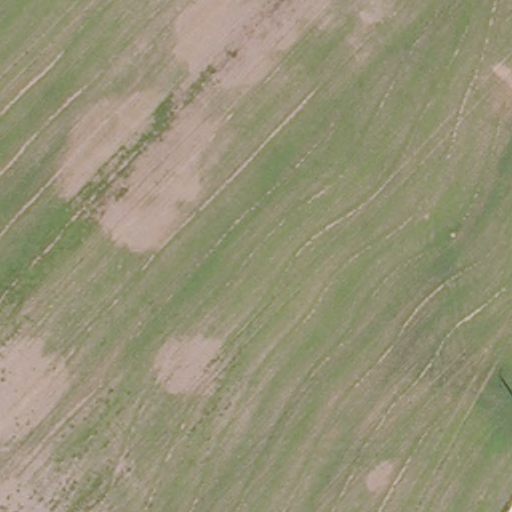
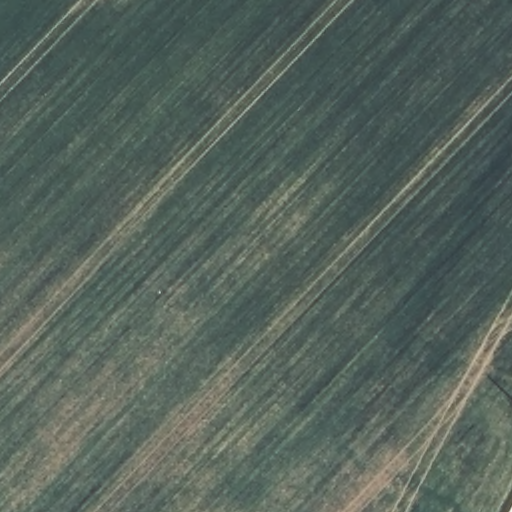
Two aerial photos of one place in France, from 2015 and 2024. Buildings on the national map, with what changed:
[]

